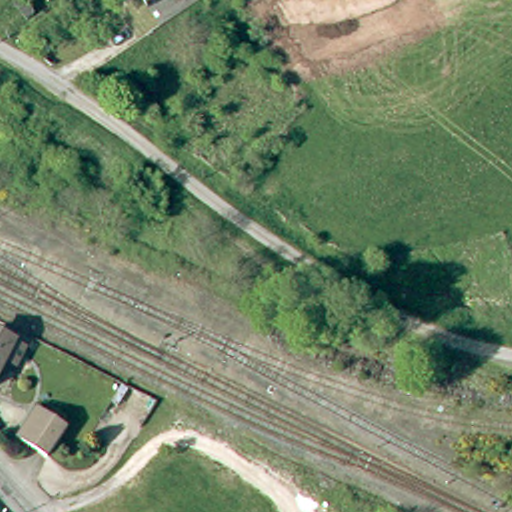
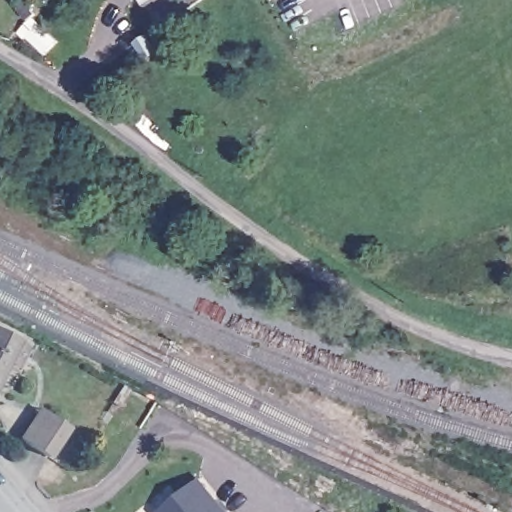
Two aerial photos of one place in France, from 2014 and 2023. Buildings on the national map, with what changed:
unchanged [(27,21),(17,6),(24,0),(25,0),(37,14),(27,21)]
unchanged [(145,0),(171,0),(152,12),(145,0)]
unchanged [(29,352),(19,372),(7,367),(0,382),(0,337),(29,352)]
unchanged [(49,461),(32,449),(23,443),(40,417),(49,422),(67,434),(49,461)]
new [(201,478),(229,512),(158,512),(201,478)]

